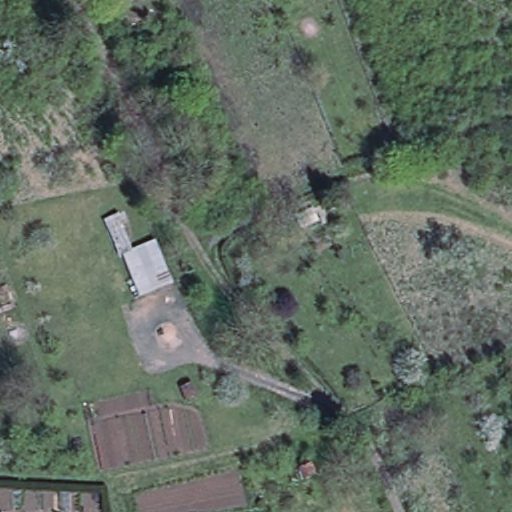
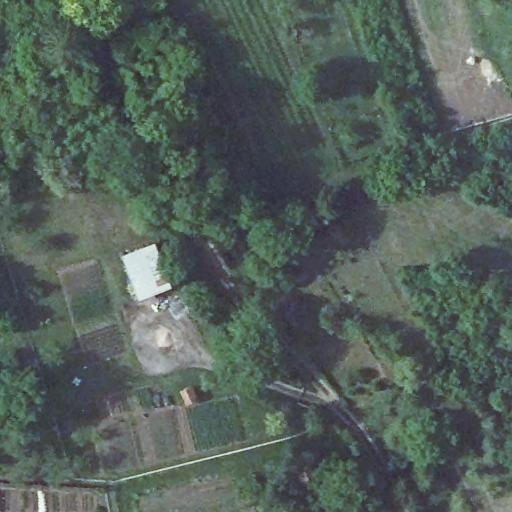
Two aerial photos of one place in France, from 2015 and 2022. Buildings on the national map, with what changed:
unchanged [(125,263),(117,267),(98,221),(118,214),(134,252),(157,242),(174,288),(138,299),(125,263)]

